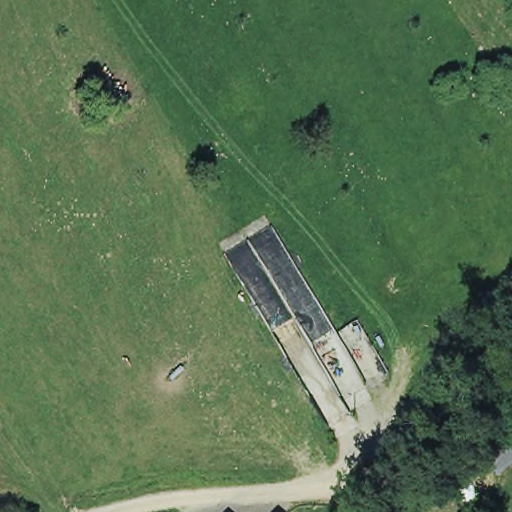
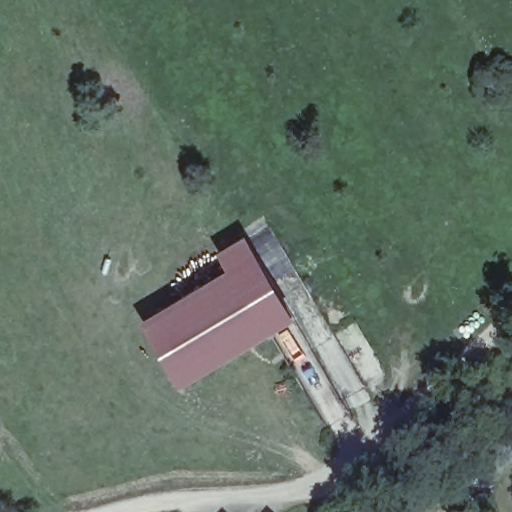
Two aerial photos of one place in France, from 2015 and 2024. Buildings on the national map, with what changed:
new [(179,388),(140,320),(227,269),(216,251),(246,234),(297,318),(179,388)]

